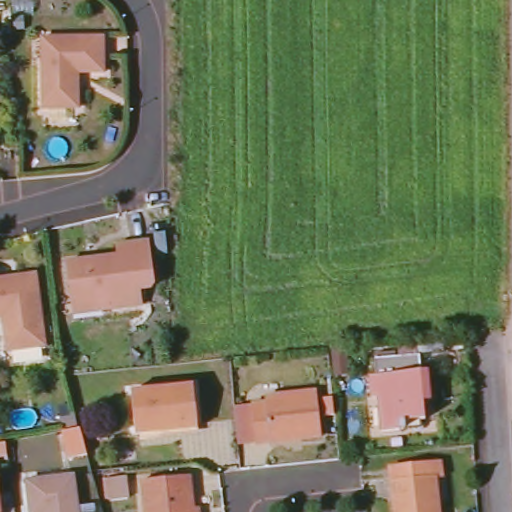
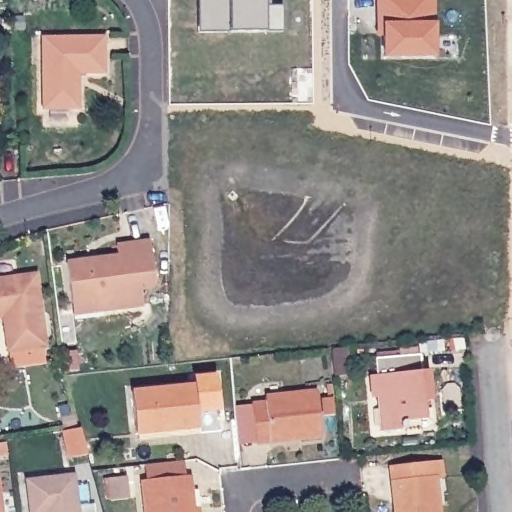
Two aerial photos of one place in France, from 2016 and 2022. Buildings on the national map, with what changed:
new [(193,0),(263,0),(263,6),(280,6),(280,32),(223,32),(193,33),(193,0)]
new [(375,0),(434,0),(434,57),(381,58),(381,18),(375,19),(375,0)]
unchanged [(103,38),(103,74),(78,74),(73,79),(78,84),(78,110),(43,110),(42,39),(103,38)]
new [(311,70),(311,105),(289,105),(289,70),(311,70)]
unchanged [(71,305),(65,264),(116,257),(114,247),(148,242),(154,284),(151,288),(139,290),(141,306),(94,313),(73,316),(71,305)]
unchanged [(0,281),(36,277),(46,348),(9,354),(5,326),(8,322),(4,319),(0,320),(0,281)]
unchanged [(349,350),(351,375),(336,376),(334,351),(349,350)]
unchanged [(427,371),(430,402),(423,403),(424,420),(406,422),(407,430),(383,433),(379,399),(373,400),(371,376),(377,375),(376,360),(400,358),(400,352),(418,350),(419,356),(420,372),(427,371)]
unchanged [(131,395),(194,388),(198,428),(136,433),(131,395)]
unchanged [(251,404),(266,403),(266,398),(316,392),(321,438),(256,445),(251,404)]
unchanged [(440,465),(442,478),(436,479),(439,512),(396,512),(391,470),(440,465)]
unchanged [(75,476),(78,512),(29,512),(26,480),(75,476)]
unchanged [(190,476),(194,512),(145,512),(141,480),(190,476)]

